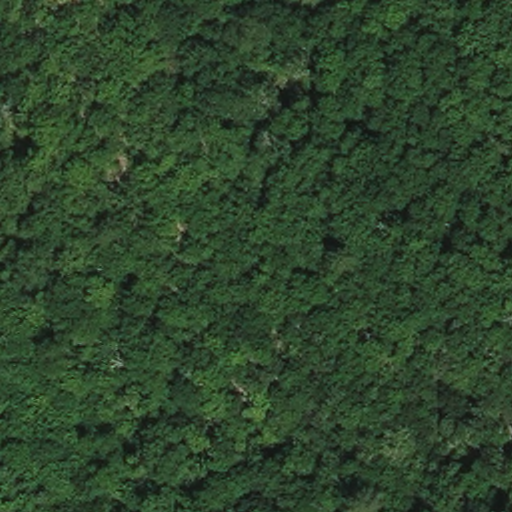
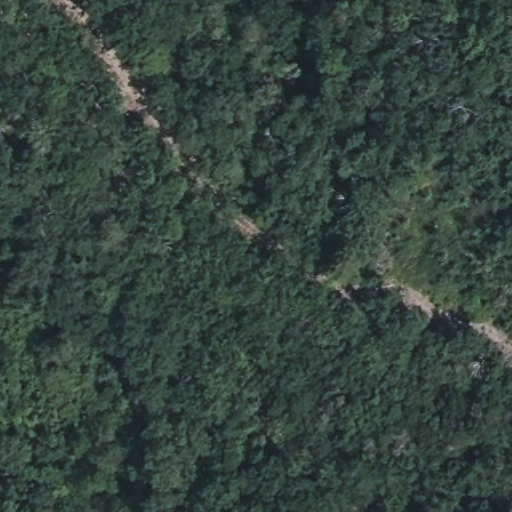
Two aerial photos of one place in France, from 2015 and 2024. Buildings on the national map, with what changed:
unchanged [(228,412),(226,425),(209,421),(211,410),(228,412)]

